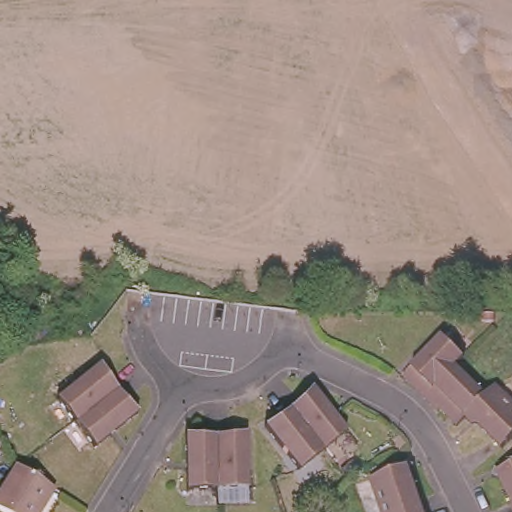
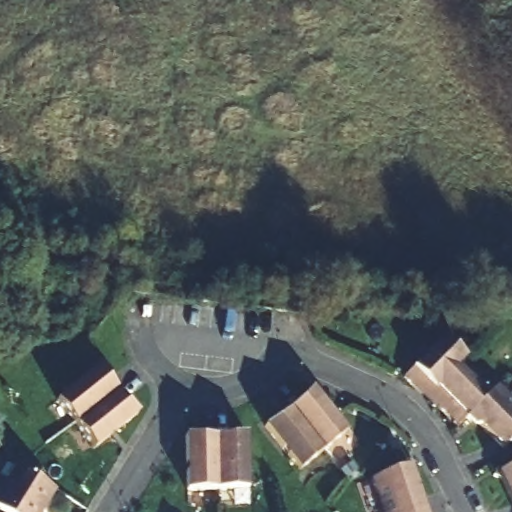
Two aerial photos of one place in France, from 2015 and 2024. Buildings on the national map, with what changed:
unchanged [(495,438),(471,413),(467,416),(463,412),(455,420),(453,418),(425,388),(419,382),(415,377),(412,380),(402,368),(441,331),(443,329),(465,351),(456,360),(472,376),(486,390),(496,380),(512,396),(512,432),(500,443),(495,438)]
unchanged [(60,404),(97,370),(104,381),(115,392),(80,425),(60,404)]
unchanged [(115,392),(122,400),(136,412),(100,446),(80,425),(115,392)]
unchanged [(295,410),(303,404),(311,392),(346,436),(330,448),(295,410)]
unchanged [(298,472),(265,428),(277,423),(295,410),(330,448),(298,472)]
unchanged [(190,489),(191,434),(206,438),(217,438),(217,488),(190,489)]
unchanged [(217,438),(228,438),(247,434),(248,488),(217,488),(217,438)]
unchanged [(478,472),(482,462),(494,467),(512,458),(512,497),(501,502),(489,477),(478,472)]
unchanged [(400,468),(405,460),(416,467),(411,474),(427,512),(384,512),(373,482),(372,480),(379,477),(401,468),(400,468)]
unchanged [(53,489),(39,512),(4,512),(0,510),(0,490),(15,465),(34,477),(53,489)]
unchanged [(512,497),(512,512),(506,512),(501,502),(512,497)]

